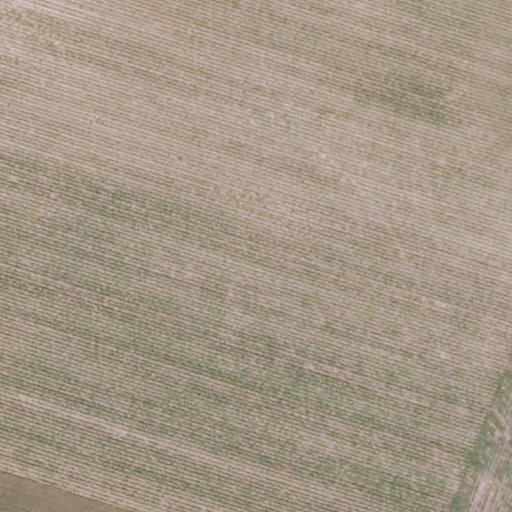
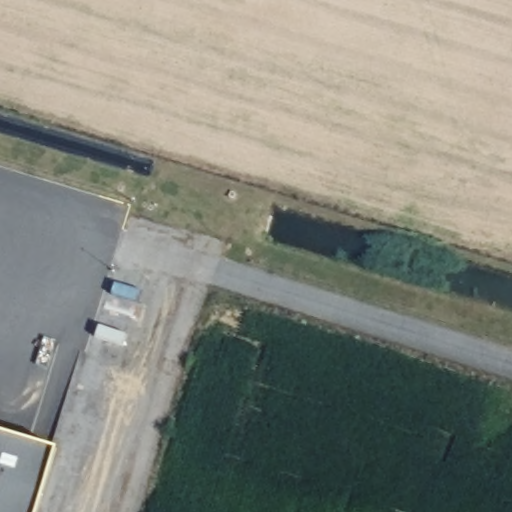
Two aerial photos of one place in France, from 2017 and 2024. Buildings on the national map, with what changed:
new [(50,474),(0,459),(0,432),(57,449),(50,474)]
new [(39,512),(0,512),(0,459),(50,474),(39,512)]

